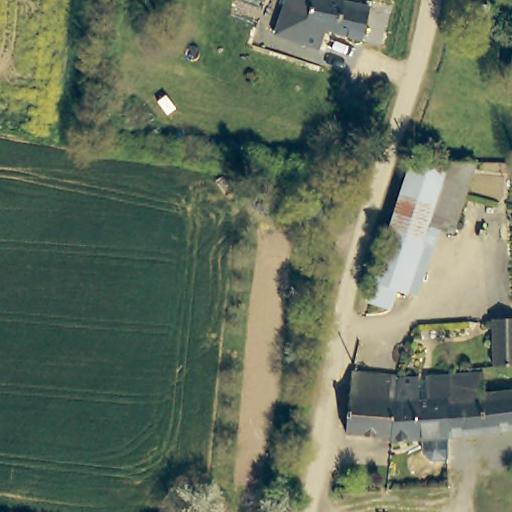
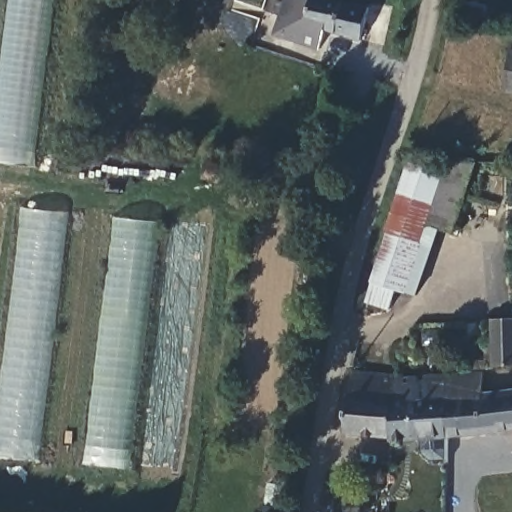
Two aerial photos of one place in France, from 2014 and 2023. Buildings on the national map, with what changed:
new [(37,170),(0,165),(0,64),(8,0),(60,0),(37,170)]
new [(380,44),(361,40),(325,30),(320,50),(274,36),(287,0),(358,0),(391,7),(380,44)]
demolished [(395,17),(386,46),(385,49),(350,37),(343,56),(300,42),(314,0),(329,0),(336,2),(395,17)]
unchanged [(512,72),(512,92),(508,91),(512,72)]
unchanged [(451,232),(443,230),(429,226),(436,207),(446,177),(451,163),(476,163),(451,232)]
unchanged [(446,177),(436,207),(429,226),(443,230),(420,296),(400,290),(394,310),(370,302),(377,283),(373,282),(401,195),(399,194),(409,164),(446,177)]
new [(22,206),(72,212),(44,463),(0,458),(0,395),(22,206)]
new [(133,472),(89,468),(117,216),(164,221),(133,472)]
unchanged [(490,320),(512,319),(512,366),(492,367),(490,320)]
unchanged [(349,435),(356,371),(400,377),(423,381),(421,398),(421,401),(420,406),(418,441),(395,439),(349,435)]
unchanged [(450,375),(481,372),(484,395),(512,392),(512,431),(450,438),(450,398),(450,375)]
unchanged [(420,406),(421,401),(450,398),(450,438),(418,441),(420,406)]

